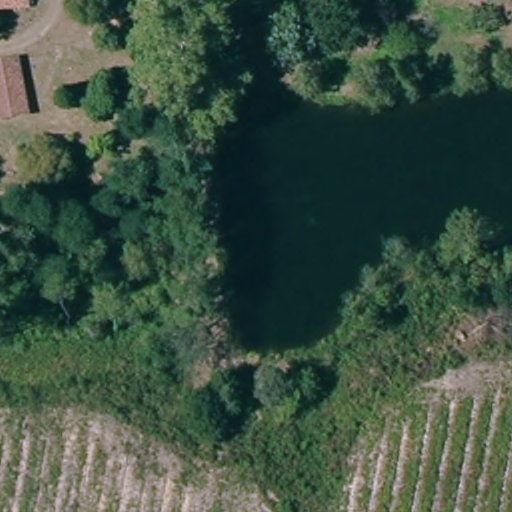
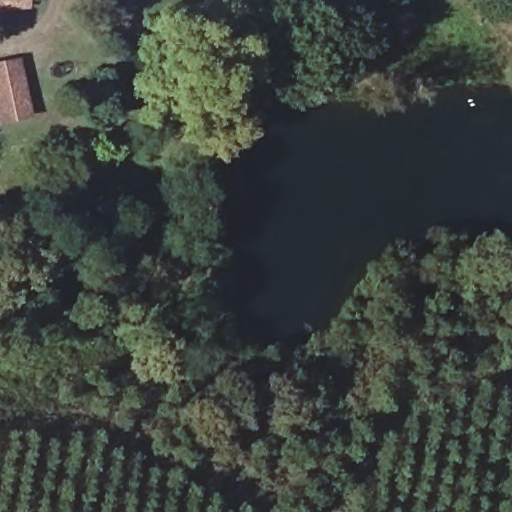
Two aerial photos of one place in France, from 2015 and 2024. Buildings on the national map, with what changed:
unchanged [(28,7),(0,11),(0,0),(28,0),(28,7)]
unchanged [(36,122),(5,127),(0,116),(0,60),(24,57),(36,122)]

